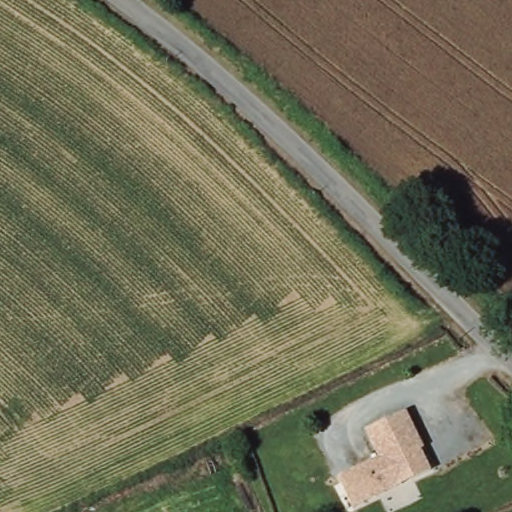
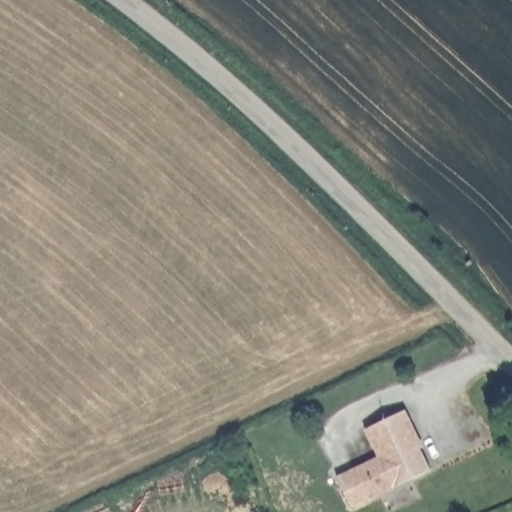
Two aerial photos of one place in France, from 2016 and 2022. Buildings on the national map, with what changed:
unchanged [(419,439),(416,441),(431,469),(355,511),(339,481),(379,459),(364,432),(403,411),(419,439)]

